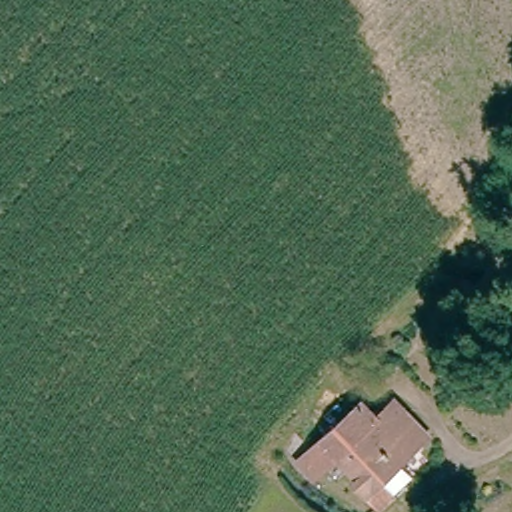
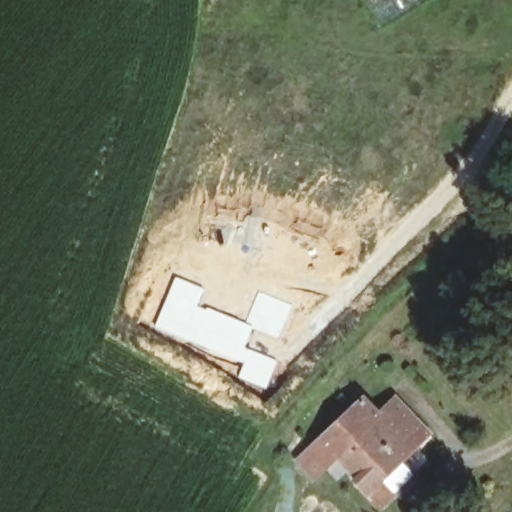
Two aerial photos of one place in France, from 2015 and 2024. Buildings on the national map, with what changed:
new [(175,275),(205,287),(199,303),(245,320),(254,325),(252,329),(254,330),(248,345),(278,358),(266,388),(237,377),(242,364),(154,327),(175,275)]
new [(255,295),(262,297),(264,294),(293,305),(278,340),(254,330),(252,329),(254,325),(245,320),(255,295)]
unchanged [(308,450),(312,447),(366,400),(384,419),(403,401),(437,439),(384,486),(397,501),(382,512),(356,485),(360,482),(338,457),(329,465),(324,468),(308,450)]

